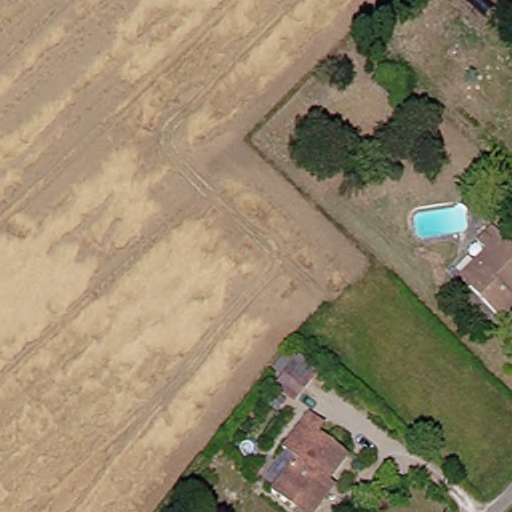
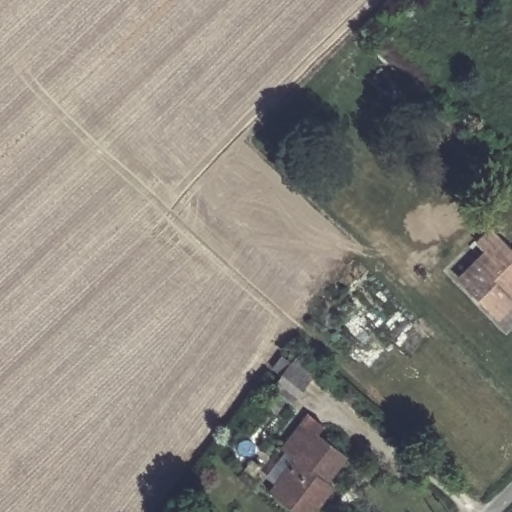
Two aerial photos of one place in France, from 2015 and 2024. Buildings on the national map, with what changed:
unchanged [(471,270),(481,259),(462,241),(480,223),(509,251),(512,248),(512,279),(504,287),(511,294),(490,315),(456,279),(468,267),(471,270)]
unchanged [(262,485),(288,458),(277,447),(307,415),(319,426),(313,432),(342,458),(321,480),(328,487),(325,491),(305,512),(289,512),(280,502),(262,485)]

